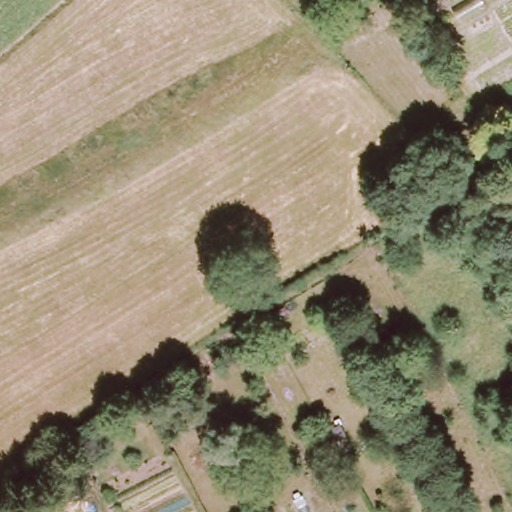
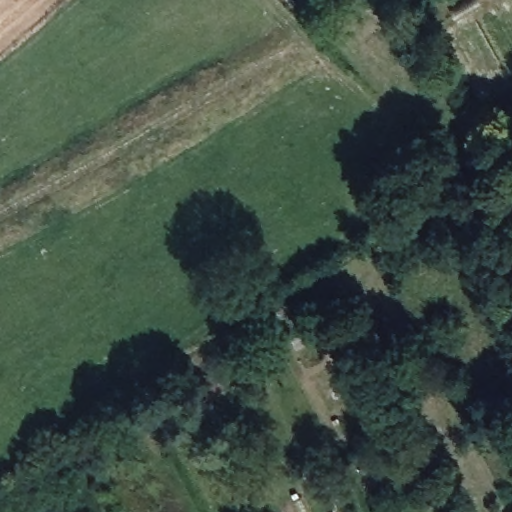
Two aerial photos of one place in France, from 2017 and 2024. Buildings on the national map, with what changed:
unchanged [(503,388),(512,383),(512,399),(510,400),(503,388)]

